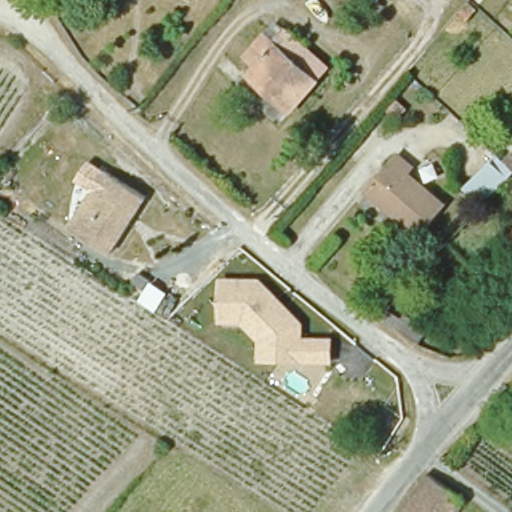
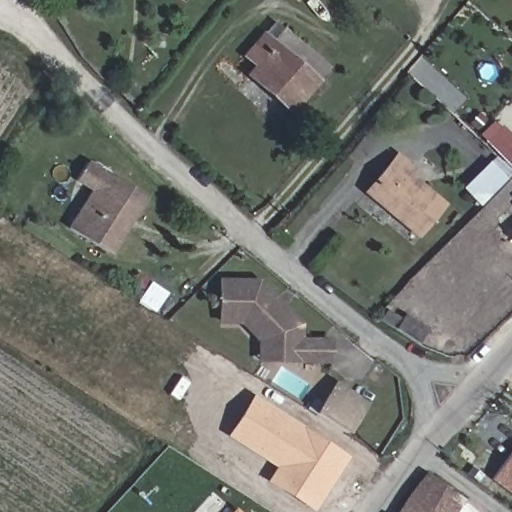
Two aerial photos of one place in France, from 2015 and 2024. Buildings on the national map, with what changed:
unchanged [(247,78),(255,68),(244,57),(265,32),(281,46),(292,37),(332,69),(323,82),(293,116),(247,78)]
unchanged [(465,190),(490,163),(499,152),(506,161),(512,156),(512,178),(508,181),(485,207),(465,190)]
unchanged [(407,173),(444,205),(419,234),(375,196),(368,190),(398,157),(404,162),(411,169),(407,173)]
unchanged [(110,254),(70,228),(106,170),(146,196),(134,216),(129,225),(110,254)]
unchanged [(512,235),(512,242),(508,238),(512,235)]
unchanged [(243,324),(220,325),(220,280),(260,280),(303,323),(304,337),(335,337),(335,366),(259,363),(258,341),(243,324)]
unchanged [(392,334),(395,331),(381,322),(389,310),(425,336),(416,349),(412,348),(392,334)]
new [(332,380),(361,399),(342,428),(313,409),(332,380)]
new [(315,511),(268,481),(277,466),(227,435),(254,394),(350,456),(315,511)]
new [(492,479),(512,452),(512,494),(492,479)]
unchanged [(403,512),(409,502),(428,477),(465,504),(461,512),(403,512)]
new [(241,512),(231,512),(235,507),(241,512)]

